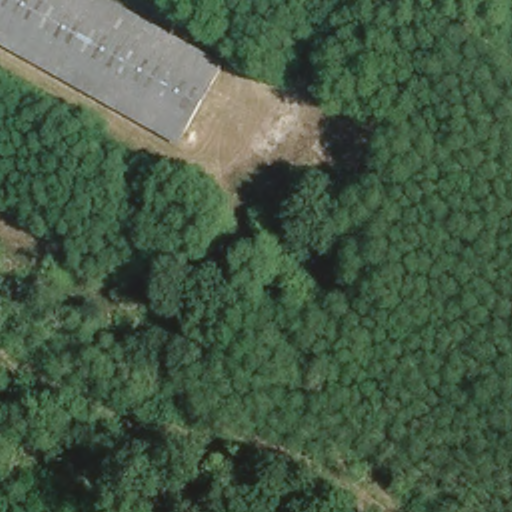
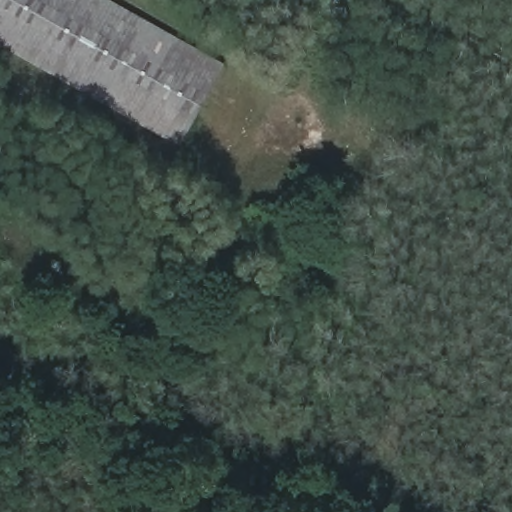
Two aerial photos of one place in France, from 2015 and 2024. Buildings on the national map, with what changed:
unchanged [(176,141),(0,41),(0,0),(109,0),(220,64),(176,141)]

